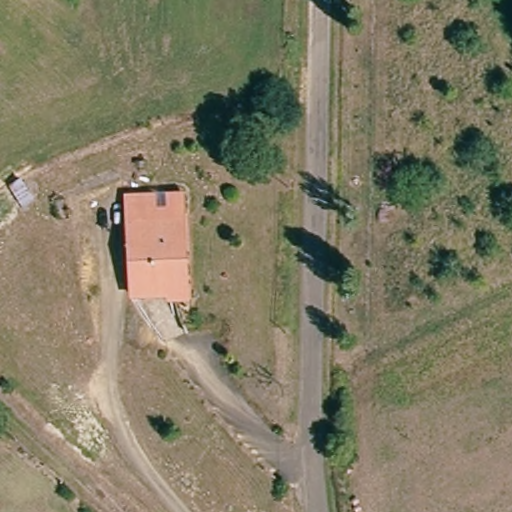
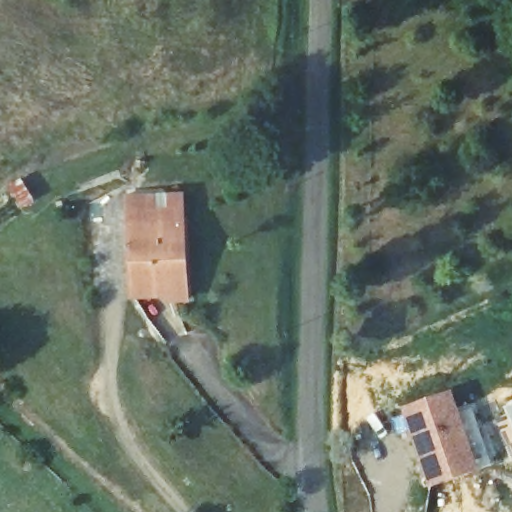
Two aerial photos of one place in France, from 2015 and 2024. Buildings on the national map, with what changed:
unchanged [(170,294),(128,292),(133,190),(190,195),(185,246),(182,295),(170,294)]
new [(401,410),(451,393),(477,473),(428,490),(401,410)]

